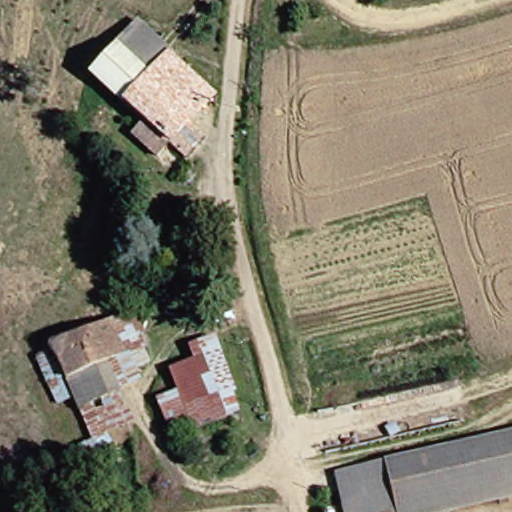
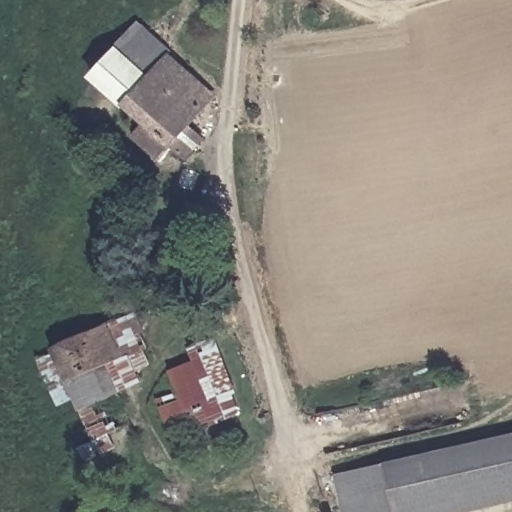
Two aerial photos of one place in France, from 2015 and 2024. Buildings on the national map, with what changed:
unchanged [(183,125),(196,136),(176,157),(161,145),(148,157),(122,134),(135,121),(115,103),(113,105),(80,74),(109,41),(130,19),(161,51),(208,94),(183,125)]
unchanged [(143,363),(111,378),(114,387),(121,406),(78,424),(69,406),(64,396),(46,403),(27,355),(45,349),(43,346),(126,310),(143,363)]
unchanged [(229,391),(225,394),(231,411),(186,429),(184,424),(163,433),(148,397),(168,389),(161,369),(185,359),(180,344),(207,335),(229,391)]
unchanged [(452,512),(336,512),(328,472),(378,460),(512,428),(512,498),(452,512)]

